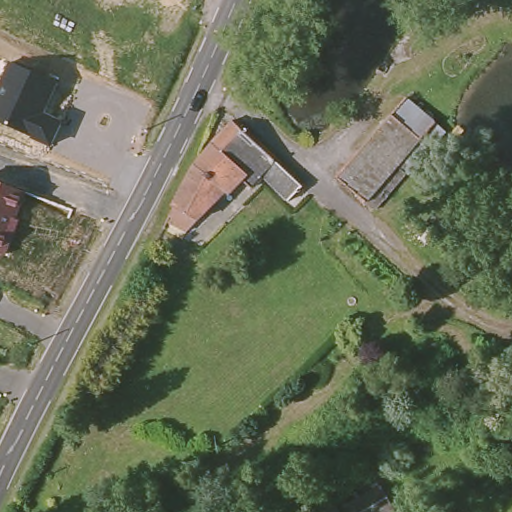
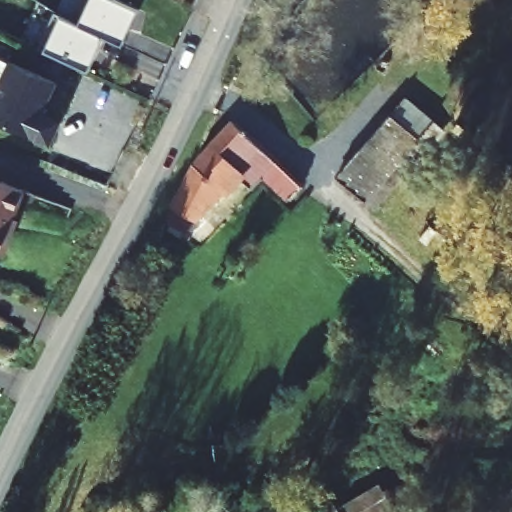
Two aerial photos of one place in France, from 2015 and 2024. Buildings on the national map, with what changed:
new [(105,35),(90,68),(48,49),(62,16),(81,24),(92,0),(118,0),(138,10),(123,44),(105,35)]
unchanged [(47,107),(63,115),(46,148),(0,123),(0,81),(10,60),(58,83),(47,107)]
unchanged [(443,127),(428,145),(375,209),(337,178),(340,174),(335,169),(358,142),(363,146),(404,96),(443,127)]
unchanged [(191,168),(229,126),(261,155),(254,163),(224,197),(208,183),(191,168)]
unchanged [(261,155),(306,195),(293,209),(286,202),(283,207),(275,198),(278,193),(258,174),(262,169),(254,163),(261,155)]
unchanged [(208,183),(188,230),(171,221),(176,213),(171,210),(191,168),(208,183)]
unchanged [(8,256),(0,252),(0,183),(30,194),(8,256)]

